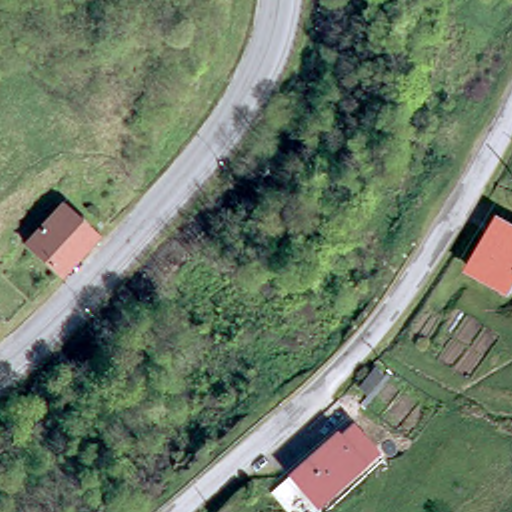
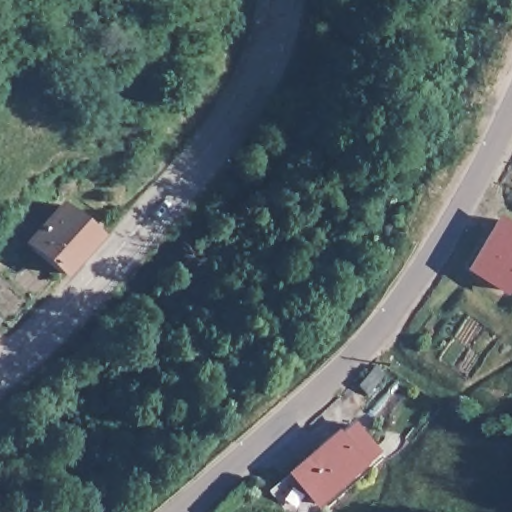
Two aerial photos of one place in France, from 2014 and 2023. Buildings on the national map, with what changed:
unchanged [(33,251),(66,214),(96,240),(60,280),(33,251)]
unchanged [(512,293),(511,295),(473,274),(502,224),(512,231),(512,293)]
unchanged [(366,402),(356,390),(373,376),(383,388),(366,402)]
unchanged [(377,455),(319,505),(294,477),(354,428),(377,455)]

